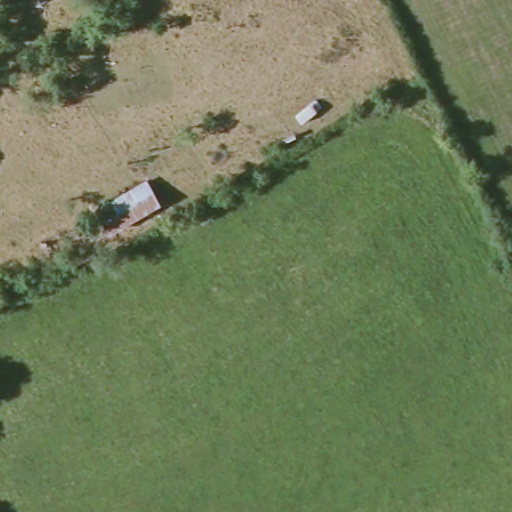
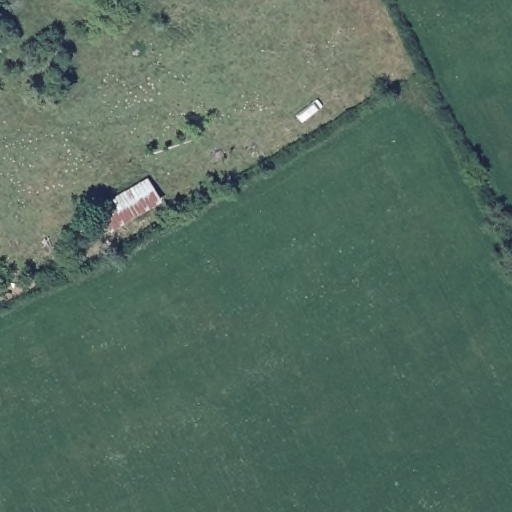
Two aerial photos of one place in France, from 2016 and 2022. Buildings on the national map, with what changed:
unchanged [(157,202),(110,228),(98,205),(145,178),(157,202)]

